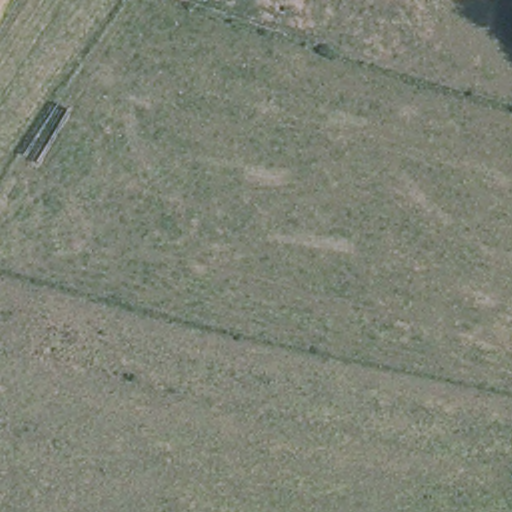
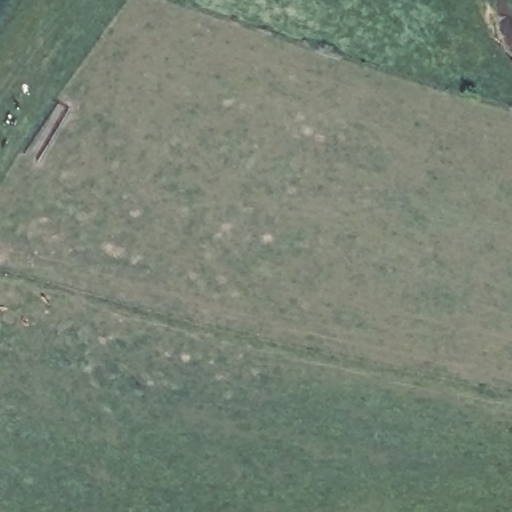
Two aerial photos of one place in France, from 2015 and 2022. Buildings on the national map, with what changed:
[]

